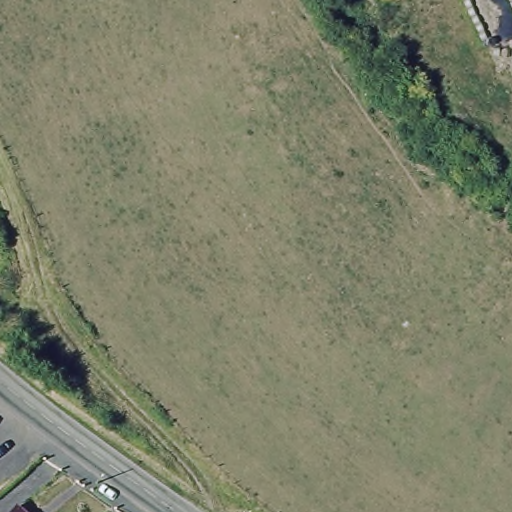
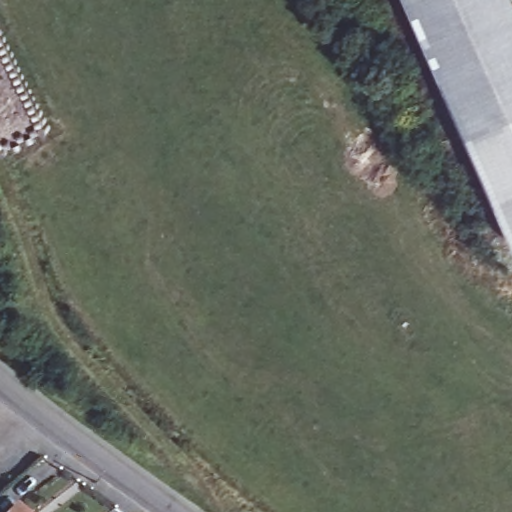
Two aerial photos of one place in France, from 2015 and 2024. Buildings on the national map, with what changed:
new [(512,214),(414,0),(512,0),(512,214)]
unchanged [(26,512),(9,512),(16,503),(26,512)]

